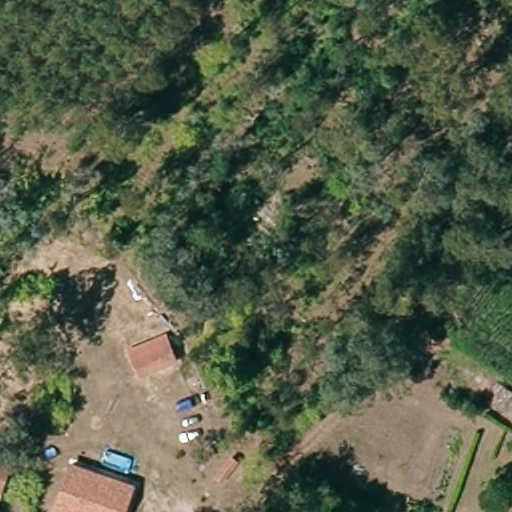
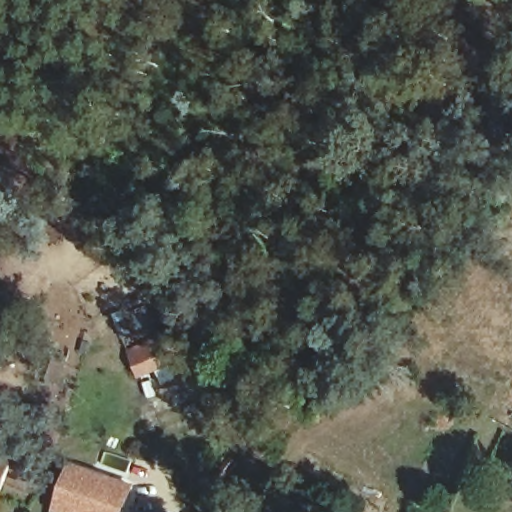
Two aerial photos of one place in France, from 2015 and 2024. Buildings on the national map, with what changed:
unchanged [(161,423),(131,350),(167,336),(196,413),(161,423)]
unchanged [(126,484),(115,512),(63,512),(54,509),(67,463),(126,484)]
unchanged [(6,469),(0,473),(0,467),(6,469)]
unchanged [(6,469),(0,487),(0,473),(6,469)]

